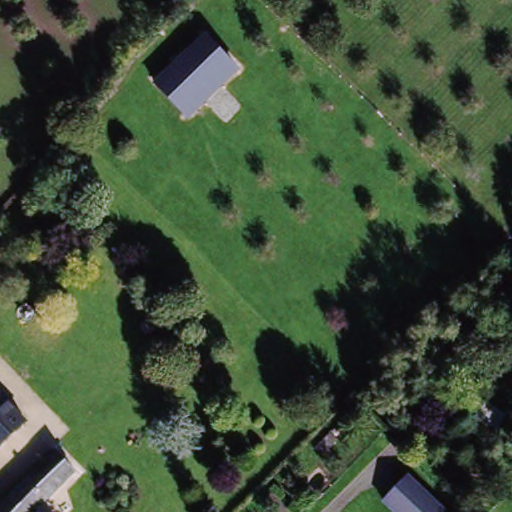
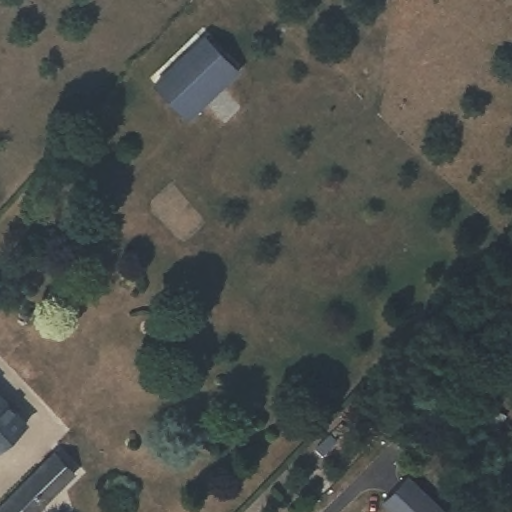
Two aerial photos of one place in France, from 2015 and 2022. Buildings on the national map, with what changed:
unchanged [(150,86),(197,38),(231,71),(184,119),(150,86)]
unchanged [(0,446),(0,406),(20,426),(0,446)]
unchanged [(71,476),(54,493),(34,512),(0,512),(0,505),(49,454),(71,476)]
unchanged [(401,481),(431,512),(381,512),(375,506),(401,481)]

